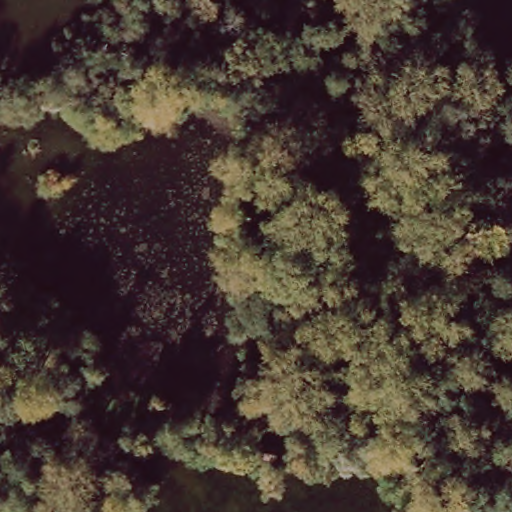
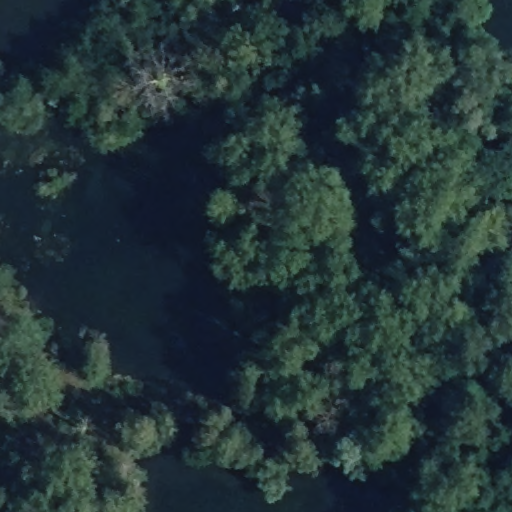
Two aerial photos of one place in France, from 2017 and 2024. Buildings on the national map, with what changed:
unchanged [(245,450),(247,437),(266,440),(265,453),(245,450)]

